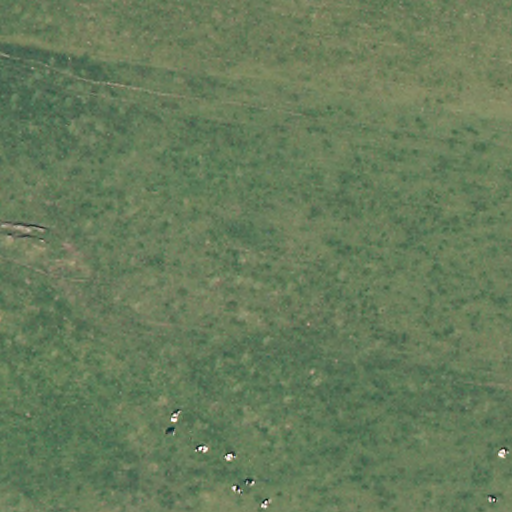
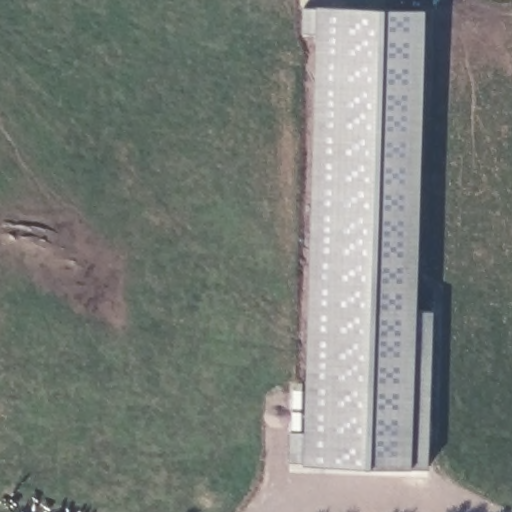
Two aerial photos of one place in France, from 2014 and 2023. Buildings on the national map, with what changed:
new [(418,311),(435,312),(431,469),(414,468),(305,465),(289,464),(290,433),(305,434),(318,34),(302,32),(303,9),(317,10),(318,7),(427,11),(418,311)]

